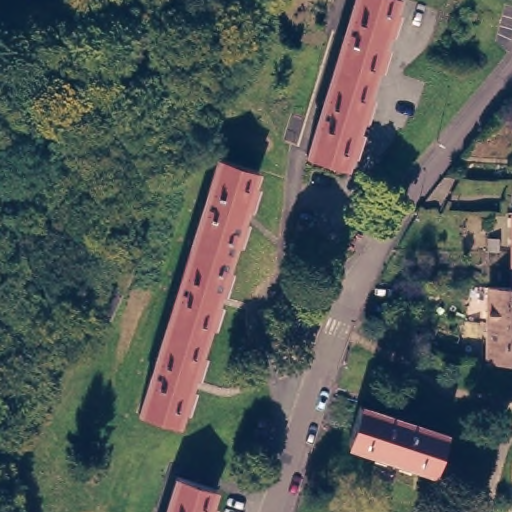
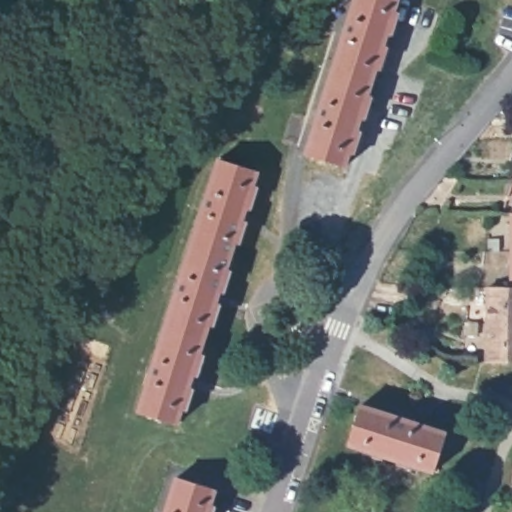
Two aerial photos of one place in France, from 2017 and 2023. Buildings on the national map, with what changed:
unchanged [(312,152),(360,0),(401,0),(349,163),(312,152)]
unchanged [(144,404),(225,151),(262,162),(182,415),(144,404)]
unchanged [(512,284),(512,321),(493,320),(493,283),(512,284)]
unchanged [(512,321),(512,358),(492,358),(493,320),(512,321)]
unchanged [(365,407),(452,435),(440,472),(353,445),(365,407)]
unchanged [(220,485),(212,512),(170,512),(182,473),(220,485)]
unchanged [(512,512),(511,512),(512,502),(512,512)]

